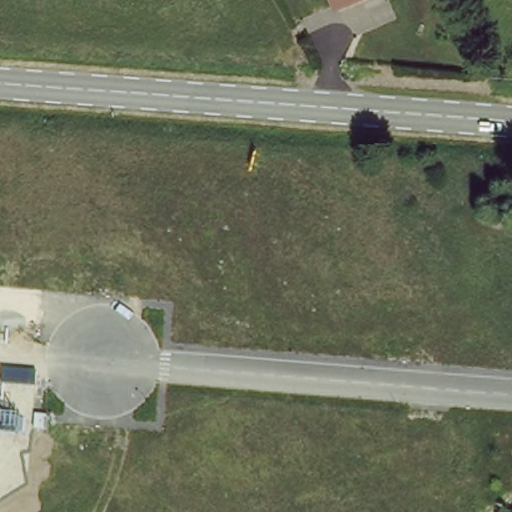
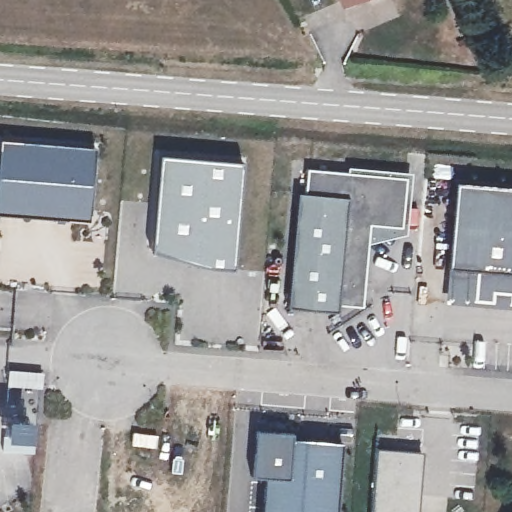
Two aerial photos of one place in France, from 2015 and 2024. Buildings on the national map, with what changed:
unchanged [(337,4),(335,0),(349,0),(337,4)]
new [(78,238),(0,233),(0,159),(83,164),(78,238)]
new [(297,193),(305,193),(307,169),(348,173),(348,166),(412,172),(408,234),(368,245),(362,307),(339,305),(338,311),(288,307),(297,193)]
new [(233,178),(230,289),(187,286),(142,271),(147,173),(233,178)]
new [(512,187),(512,308),(444,302),(447,267),(455,181),(512,187)]
new [(260,512),(263,476),(250,475),(254,429),(290,431),(290,438),(340,442),(334,512),(260,512)]
new [(413,512),(366,512),(368,463),(415,467),(413,512)]

